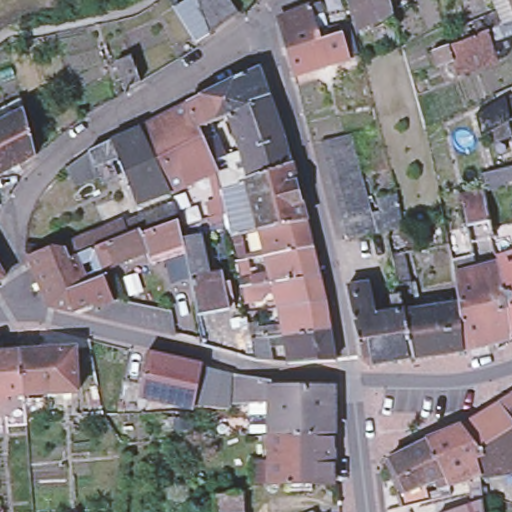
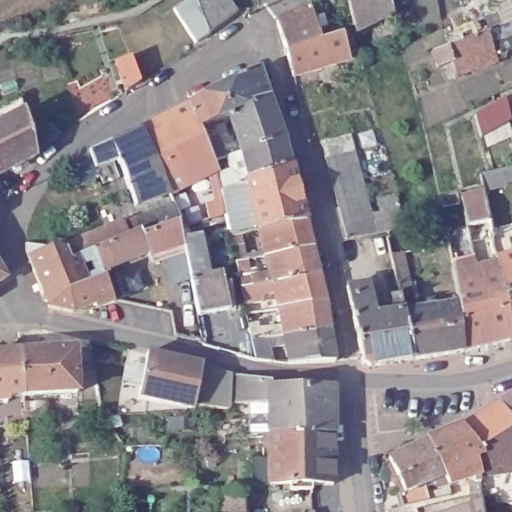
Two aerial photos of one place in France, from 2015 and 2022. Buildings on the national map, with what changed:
unchanged [(238,14),(224,23),(195,44),(184,15),(204,0),(228,0),(238,14)]
unchanged [(396,19),(355,30),(347,0),(391,0),(396,19)]
unchanged [(463,39),(458,28),(476,21),(489,15),(483,0),(511,0),(512,3),(512,33),(493,43),(498,59),(456,74),(453,62),(439,68),(434,52),(448,46),(463,39)]
unchanged [(512,3),(511,0),(512,0),(512,3)]
unchanged [(327,6),(331,16),(321,20),(324,35),(335,32),(338,40),(346,38),(356,65),(299,82),(283,24),(317,10),(327,6)]
unchanged [(128,90),(115,63),(131,56),(141,80),(142,81),(128,90)]
unchanged [(73,312),(48,307),(34,274),(29,262),(28,258),(26,253),(28,244),(51,247),(64,249),(63,248),(75,242),(74,240),(123,220),(125,225),(136,220),(175,205),(170,192),(136,205),(118,159),(111,142),(141,128),(189,104),(219,88),(259,69),(269,95),(284,138),(291,165),(251,181),(248,171),(221,179),(223,191),(228,218),(205,225),(203,221),(184,228),(181,220),(178,221),(181,240),(200,236),(208,278),(222,275),(229,311),(198,317),(190,281),(184,252),(153,264),(149,253),(104,272),(114,302),(95,308),(94,304),(73,312)]
unchanged [(512,121),(512,122),(510,123),(482,137),(476,116),(504,100),(512,96),(512,121)]
unchanged [(0,176),(0,126),(21,115),(33,160),(0,176)]
unchanged [(380,199),(398,195),(401,209),(403,217),(404,228),(376,233),(347,238),(341,217),(338,202),(333,187),(329,172),(326,157),(321,141),(351,134),(355,150),(359,164),(363,179),(366,194),(368,201),(370,209),(371,214),(383,212),(380,199)]
unchanged [(112,161),(115,169),(99,175),(99,177),(73,187),(66,170),(90,152),(111,141),(111,142),(118,159),(112,161)]
unchanged [(266,256),(261,238),(243,242),(240,233),(231,235),(229,228),(238,226),(238,224),(257,220),(250,190),(233,196),(230,188),(248,182),(251,181),(291,165),(306,220),(312,247),(266,256)]
unchanged [(462,197),(484,192),(484,186),(481,174),(512,167),(512,230),(508,231),(512,247),(512,254),(498,258),(495,250),(492,230),(470,235),(464,209),(462,197)]
unchanged [(399,283),(394,254),(389,236),(399,234),(403,252),(409,282),(415,310),(458,303),(463,350),(414,359),(404,311),(399,283)]
unchanged [(251,300),(245,302),(242,287),(253,285),(251,276),(271,272),(266,256),(312,247),(319,275),(326,303),(280,308),(276,292),(256,295),(250,296),(251,300)]
unchanged [(498,262),(498,258),(512,254),(512,335),(498,262)]
unchanged [(478,267),(498,262),(512,335),(512,339),(488,344),(478,267)]
unchanged [(463,350),(458,303),(457,293),(455,273),(478,267),(488,344),(463,350)]
unchanged [(371,366),(362,359),(350,297),(373,294),(377,316),(387,363),(371,366)]
unchanged [(249,323),(259,322),(259,327),(264,327),(283,325),(280,308),(326,303),(330,330),(334,360),(290,363),(286,345),(274,346),(267,345),(271,362),(257,360),(256,358),(253,338),(249,323)]
unchanged [(387,363),(377,316),(404,312),(413,359),(387,363)]
unchanged [(19,351),(60,347),(61,359),(73,358),(76,389),(23,394),(19,351)]
unchanged [(178,398),(145,393),(151,358),(153,347),(186,354),(178,398)]
unchanged [(6,396),(7,402),(0,403),(0,353),(19,351),(23,394),(6,396)]
unchanged [(199,402),(198,402),(178,398),(186,354),(208,360),(199,402)]
unchanged [(276,431),(274,397),(236,398),(237,368),(253,372),(278,375),(278,379),(339,380),(339,430),(276,431)]
unchanged [(432,500),(406,506),(402,497),(401,494),(404,492),(389,459),(429,440),(439,435),(460,427),(499,404),(512,396),(512,472),(480,478),(479,475),(450,484),(448,484),(444,477),(437,480),(439,488),(432,491),(450,487),(453,495),(434,499),(432,500)]
unchanged [(339,430),(338,480),(317,479),(316,485),(296,485),(296,479),(275,479),(276,431),(339,430)]
unchanged [(244,492),(246,512),(216,512),(216,494),(244,492)]
unchanged [(482,499),(482,502),(483,512),(475,512),(474,500),(482,499)]
unchanged [(458,503),(460,512),(436,512),(435,509),(458,503)]
unchanged [(315,512),(310,512),(314,510),(315,512)]

